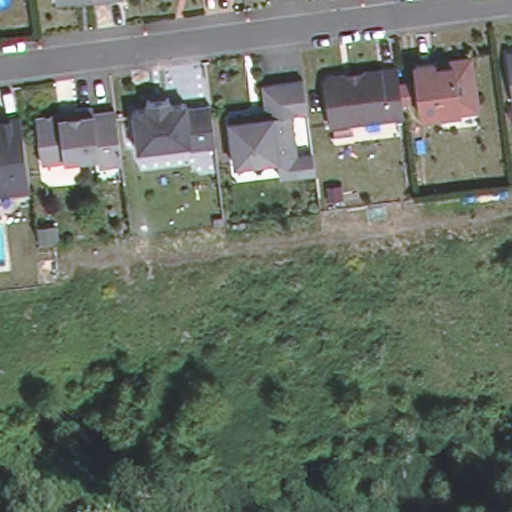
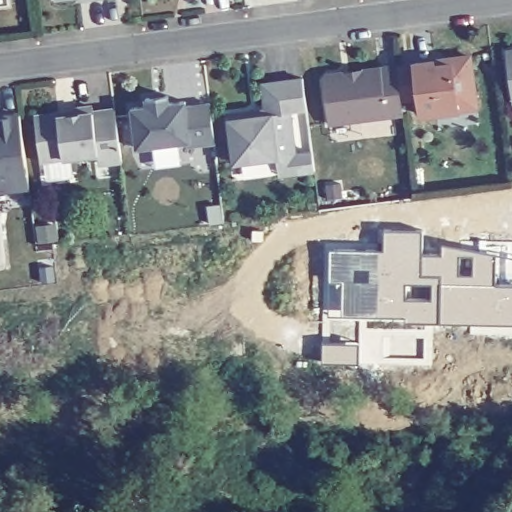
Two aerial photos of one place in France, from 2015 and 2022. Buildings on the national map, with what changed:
unchanged [(512,51),(512,103),(510,103),(504,52),(512,51)]
unchanged [(479,100),(461,102),(462,110),(457,110),(455,115),(450,115),(445,111),(424,115),(418,64),(473,56),(479,100)]
unchanged [(326,123),(320,80),(327,74),(342,72),(343,76),(363,74),(362,70),(395,65),(401,114),(326,123)]
unchanged [(292,112),(298,154),(235,161),(230,117),(252,115),(252,118),(274,115),(270,84),(305,78),(309,110),(292,112)]
unchanged [(134,103),(148,101),(147,93),(170,90),(171,97),(187,96),(187,100),(212,97),(217,137),(192,140),(192,136),(139,143),(134,103)]
unchanged [(97,162),(96,152),(39,159),(34,115),(57,112),(57,115),(72,113),(72,107),(90,105),(90,111),(112,109),(119,160),(97,162)]
unchanged [(0,190),(0,117),(17,115),(24,165),(27,187),(7,189),(0,190)]
unchanged [(305,171),(303,153),(315,151),(317,170),(305,171)]
new [(383,254),(385,232),(422,233),(422,257),(442,257),(442,247),(479,250),(480,255),(494,256),(493,286),(512,287),(512,327),(405,325),(405,320),(328,318),(331,254),(383,254)]

